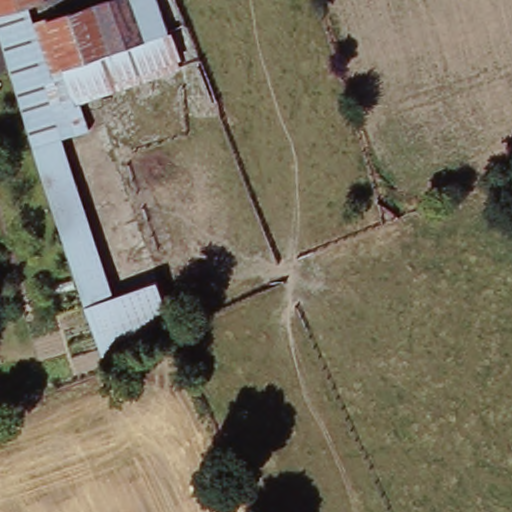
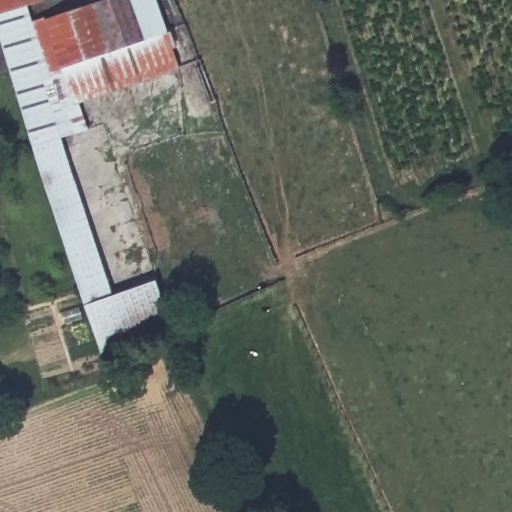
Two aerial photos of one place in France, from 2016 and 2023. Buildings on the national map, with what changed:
unchanged [(32,9),(0,22),(0,0),(42,0),(43,4),(32,9)]
unchanged [(96,5),(110,0),(158,0),(171,30),(115,52),(97,7),(96,5)]
unchanged [(32,9),(39,24),(51,21),(54,26),(97,7),(115,52),(20,91),(0,26),(0,22),(32,9)]
unchanged [(115,52),(171,30),(180,61),(86,97),(96,134),(70,143),(40,154),(20,91),(115,52)]
unchanged [(70,143),(117,306),(92,316),(89,317),(66,243),(40,154),(70,143)]
unchanged [(161,325),(149,333),(121,344),(111,347),(106,345),(101,343),(99,340),(98,338),(95,332),(89,317),(92,316),(117,306),(159,288),(169,319),(161,325)]
unchanged [(99,340),(101,343),(106,345),(111,347),(121,344),(149,333),(161,325),(169,319),(175,339),(106,367),(99,340)]

